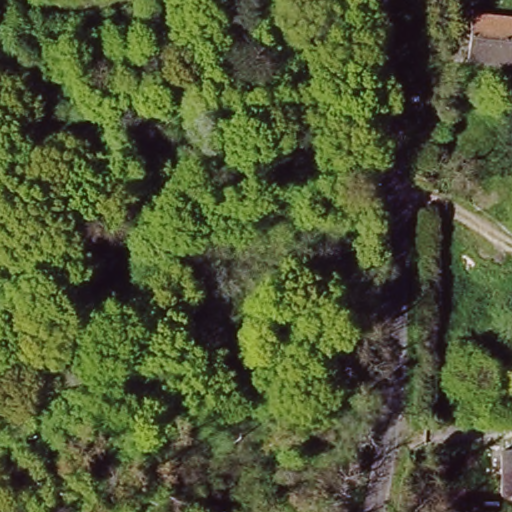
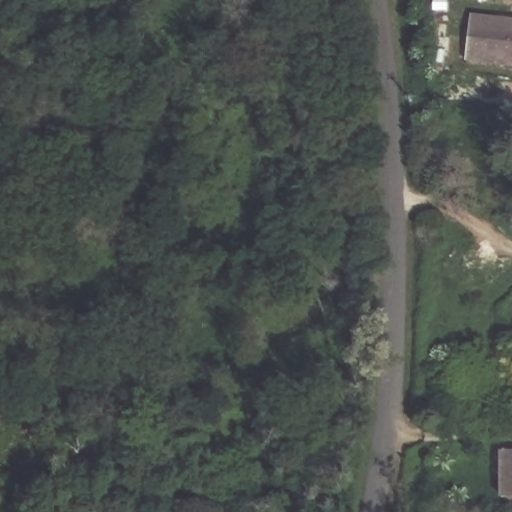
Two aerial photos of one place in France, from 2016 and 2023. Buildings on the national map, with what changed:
unchanged [(475,15),(512,19),(512,62),(470,56),(475,15)]
unchanged [(495,377),(478,376),(480,362),(496,365),(495,377)]
unchanged [(510,447),(512,447),(512,492),(508,492),(510,447)]

